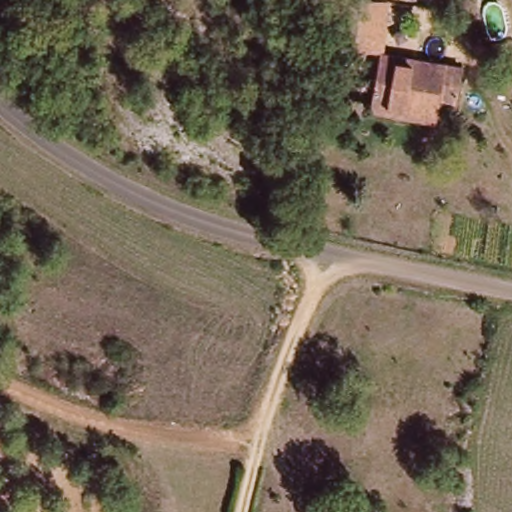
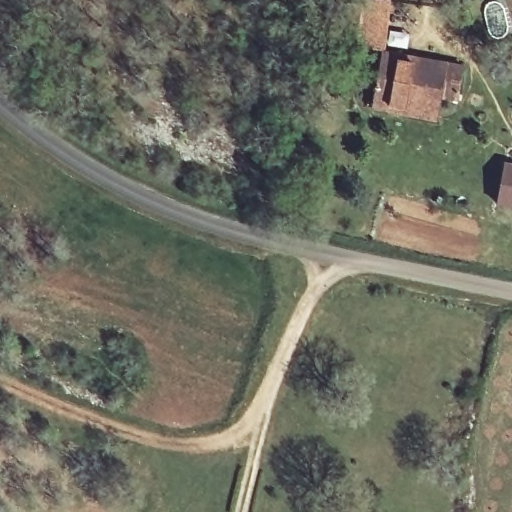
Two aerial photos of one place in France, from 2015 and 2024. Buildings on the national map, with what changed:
unchanged [(362,0),(391,0),(385,45),(355,44),(362,0)]
unchanged [(453,100),(442,97),(440,117),(407,110),(404,102),(389,99),(385,106),(372,104),(380,61),(383,50),(415,57),(460,67),(453,100)]
new [(505,163),(512,164),(512,208),(496,205),(505,163)]

